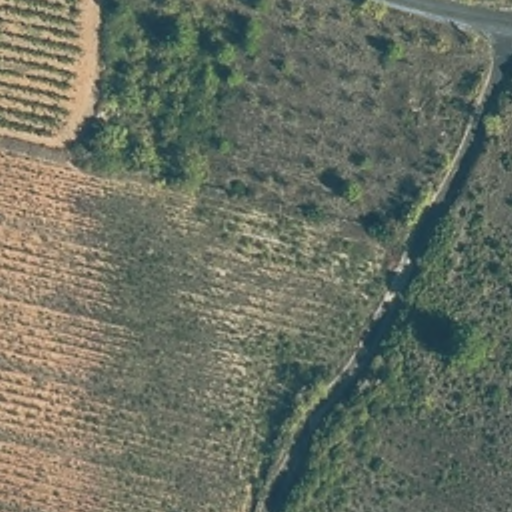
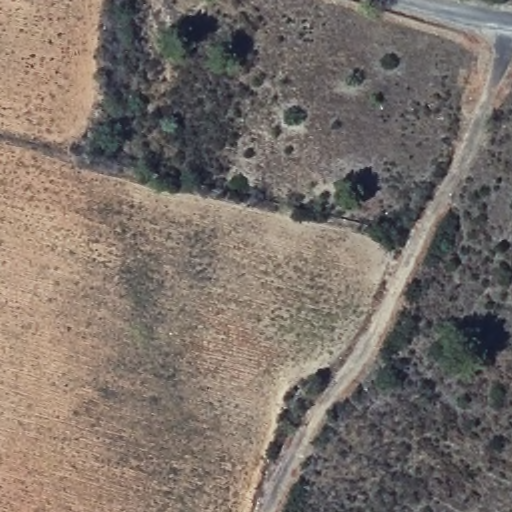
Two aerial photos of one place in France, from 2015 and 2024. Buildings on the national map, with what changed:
unchanged [(315,377),(311,398),(294,394),(297,377),(315,377)]

